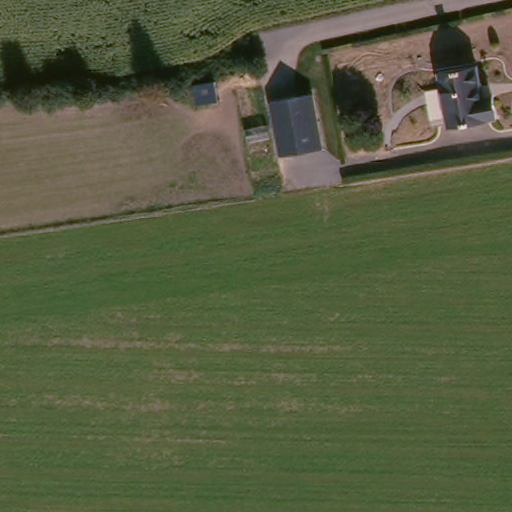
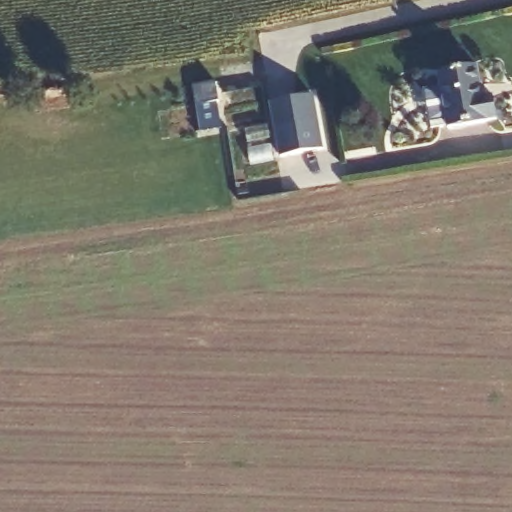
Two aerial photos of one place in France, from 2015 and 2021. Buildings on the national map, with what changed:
unchanged [(438,88),(434,72),(473,65),(477,98),(488,97),(492,122),(444,129),(443,123),(424,125),(421,91),(438,88)]
unchanged [(217,78),(219,98),(199,102),(195,81),(217,78)]
unchanged [(314,98),(323,152),(280,160),(271,105),(314,98)]

